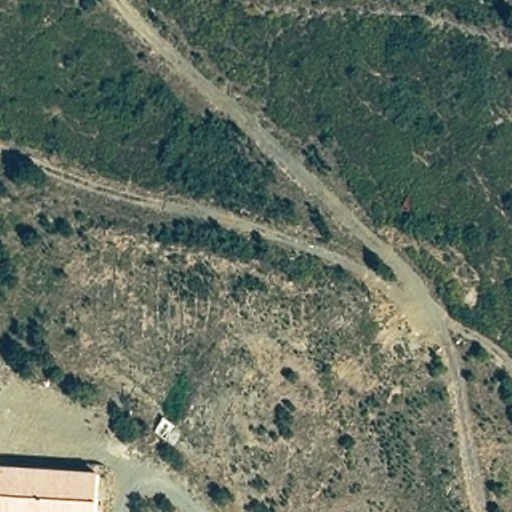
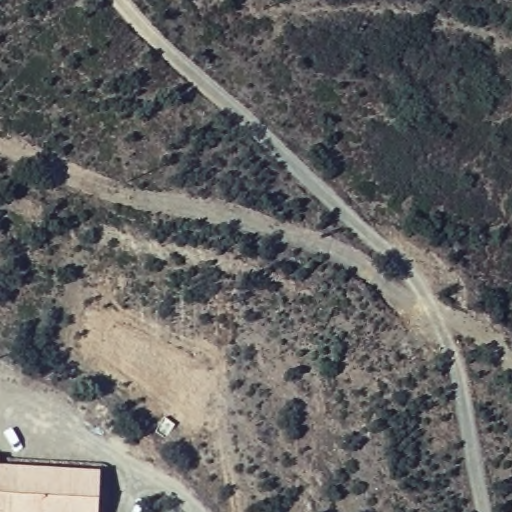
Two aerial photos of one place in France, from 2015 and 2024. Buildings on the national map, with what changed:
unchanged [(98,512),(0,512),(0,470),(99,477),(98,512)]

